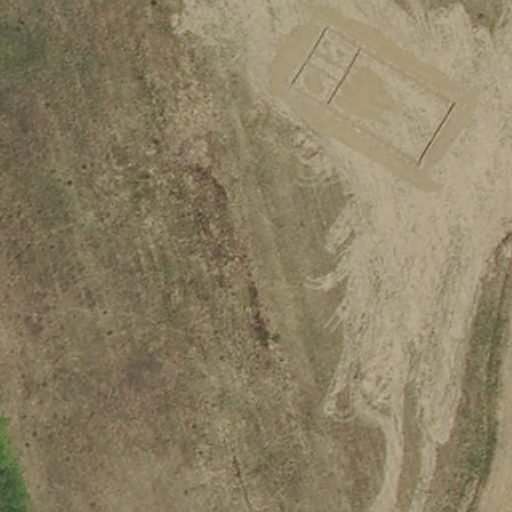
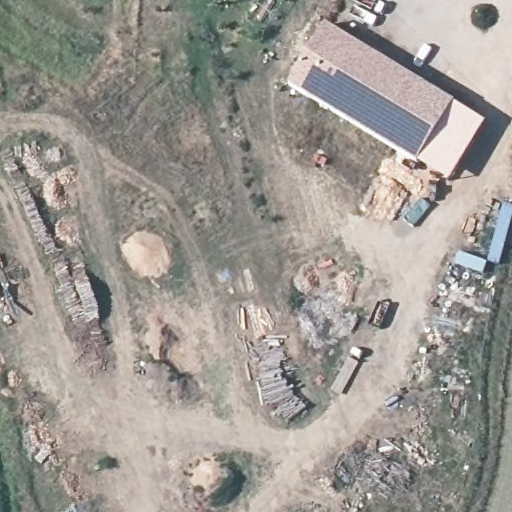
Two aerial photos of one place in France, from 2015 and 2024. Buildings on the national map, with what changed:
new [(328,30),(456,107),(420,167),(291,90),(328,30)]

